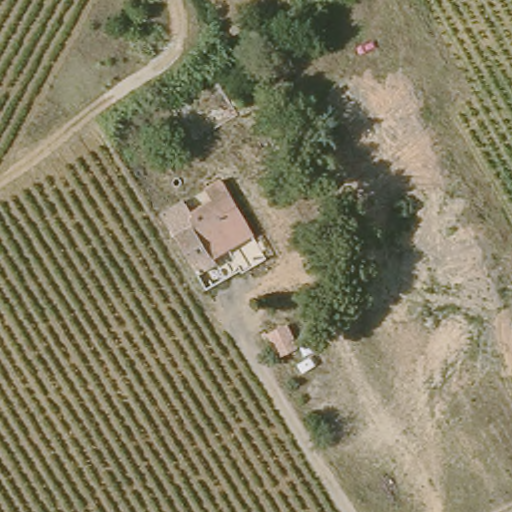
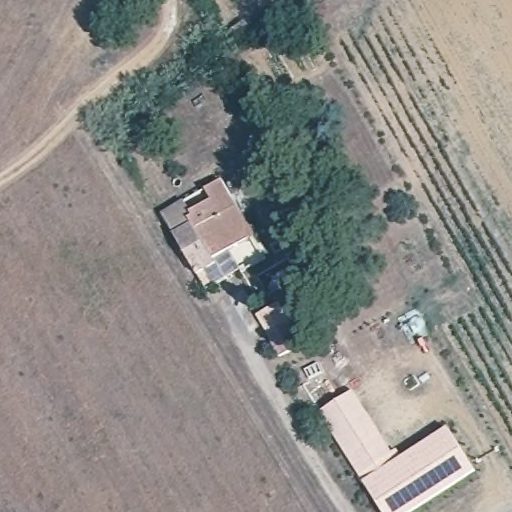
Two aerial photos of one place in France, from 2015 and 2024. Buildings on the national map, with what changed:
demolished [(243,118),(201,143),(178,106),(221,81),(243,118)]
demolished [(363,122),(394,105),(407,126),(373,139),(363,122)]
unchanged [(181,236),(200,223),(208,218),(203,209),(218,199),(213,188),(229,180),(260,235),(264,241),(230,260),(223,264),(205,275),(181,236)]
new [(319,411),(353,391),(394,455),(360,475),(319,411)]
new [(449,429),(475,472),(413,512),(384,512),(365,480),(449,429)]

